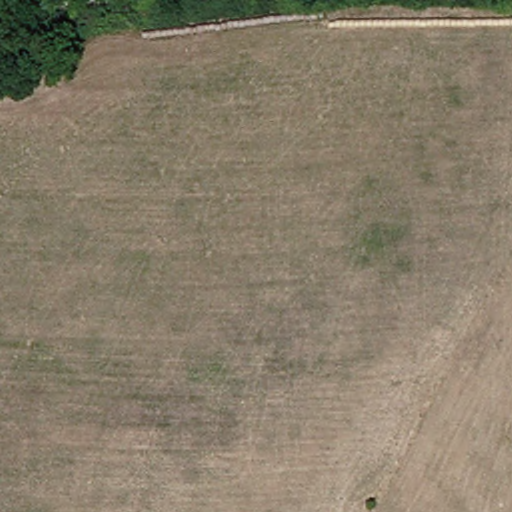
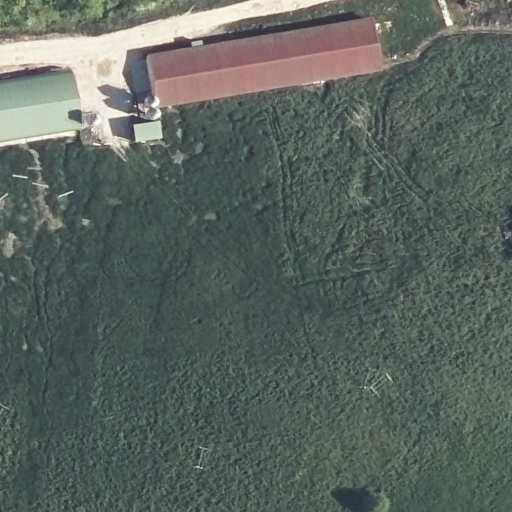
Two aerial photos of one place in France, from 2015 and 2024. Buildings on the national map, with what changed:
new [(367,20),(377,72),(154,108),(144,57),(367,20)]
new [(66,71),(77,131),(0,142),(0,81),(66,71)]

